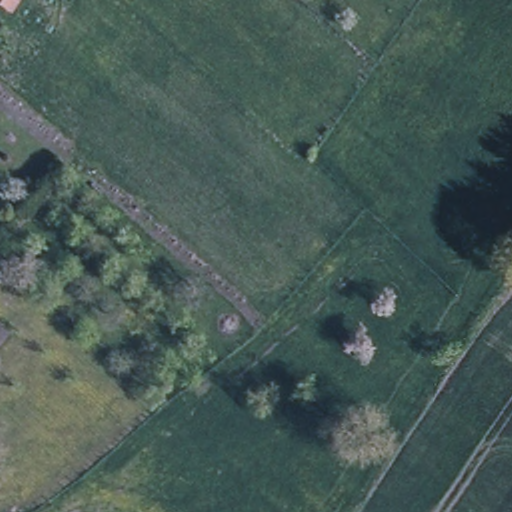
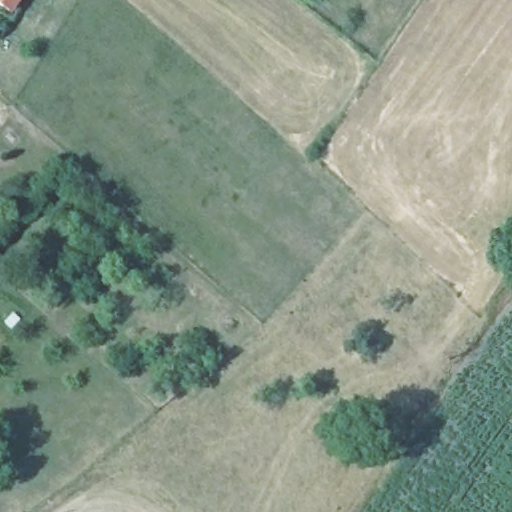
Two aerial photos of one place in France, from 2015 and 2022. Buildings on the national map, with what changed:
unchanged [(7,11),(0,7),(0,0),(14,0),(7,11)]

